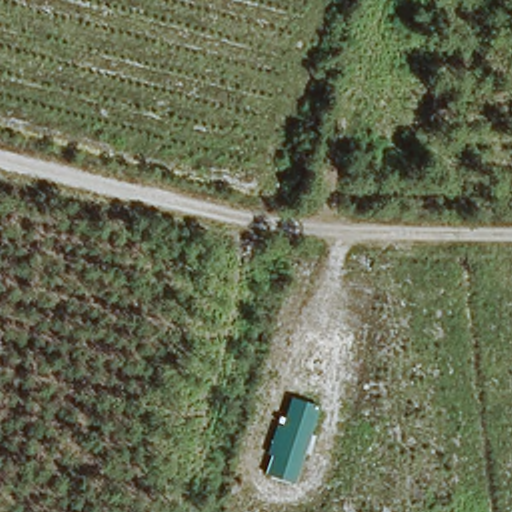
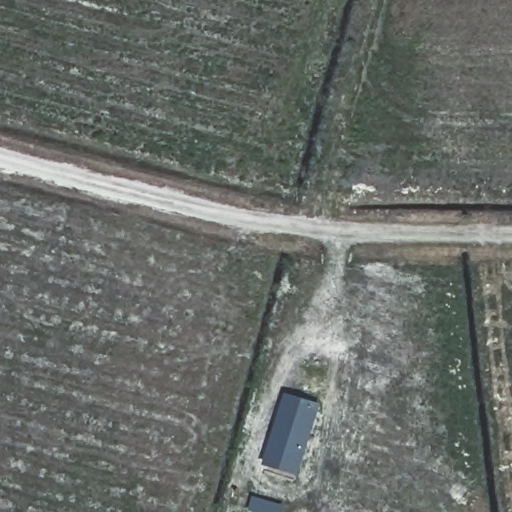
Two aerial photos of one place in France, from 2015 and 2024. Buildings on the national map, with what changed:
unchanged [(292,397),(320,407),(311,433),(316,435),(310,455),(305,453),(295,483),(266,474),(272,455),(268,453),(278,425),(281,426),(283,422),(278,422),(280,416),(285,417),(292,397)]

